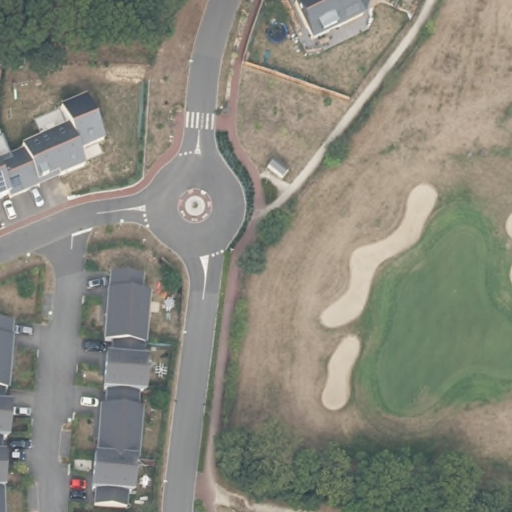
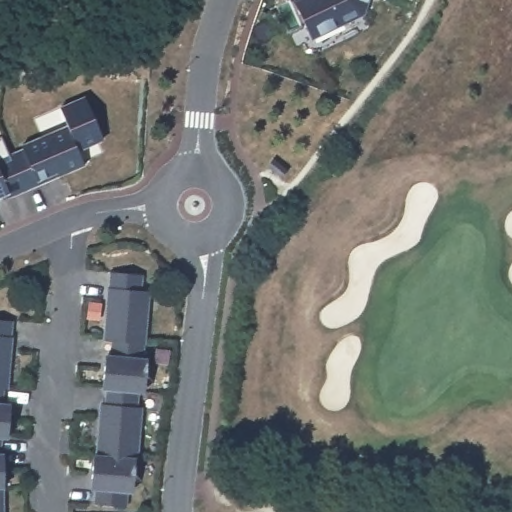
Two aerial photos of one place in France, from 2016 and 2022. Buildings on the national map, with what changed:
unchanged [(292,0),(369,0),(362,16),(309,39),(291,1),(292,0)]
unchanged [(85,163),(0,199),(0,153),(67,126),(85,163)]
unchanged [(303,207),(306,210),(299,218),(297,216),(286,205),(293,198),(303,207)]
unchanged [(87,489),(84,488),(90,457),(91,457),(94,442),(101,406),(105,407),(107,391),(105,390),(111,359),(115,360),(118,344),(111,342),(124,275),(159,282),(156,298),(159,299),(150,350),(143,398),(139,397),(136,413),(140,413),(134,447),(130,465),(127,464),(121,495),(118,495),(115,511),(84,505),(87,489)]
unchanged [(17,310),(5,376),(0,376),(0,307),(13,309),(17,310)]
unchanged [(5,437),(1,436),(0,440),(0,405),(10,407),(5,437)]
unchanged [(0,468),(0,452),(2,452),(0,468)]

